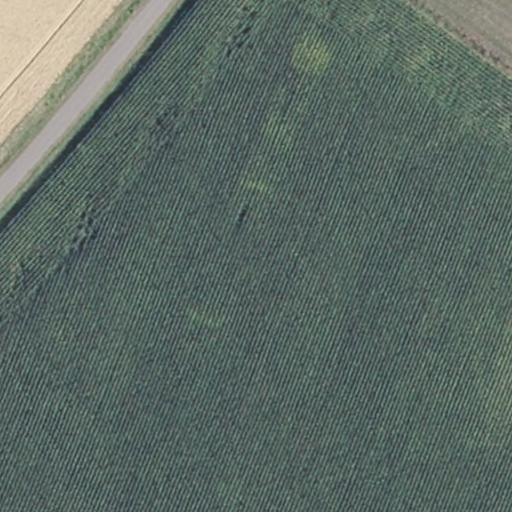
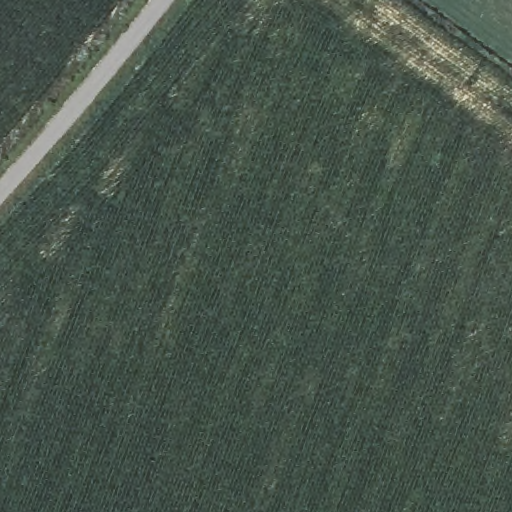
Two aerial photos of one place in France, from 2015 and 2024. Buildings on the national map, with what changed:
[]

